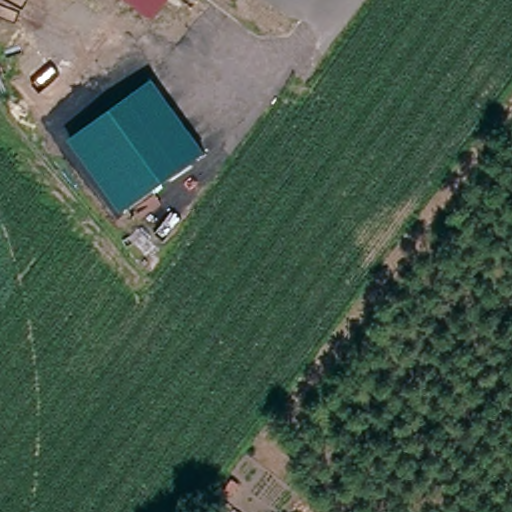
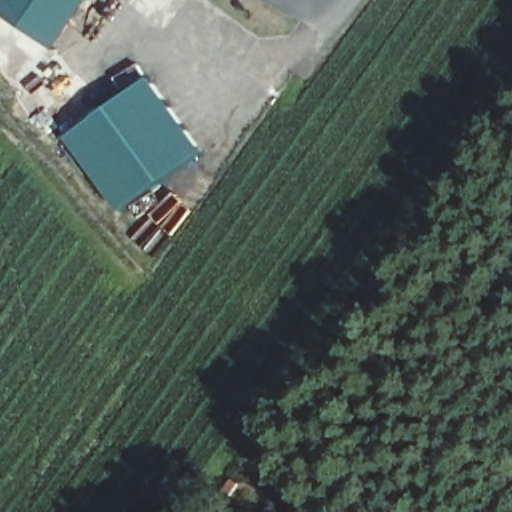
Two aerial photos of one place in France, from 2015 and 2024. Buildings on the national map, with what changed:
new [(91,0),(57,49),(0,12),(0,0),(91,0)]
demolished [(120,0),(170,0),(150,23),(120,0)]
unchanged [(202,152),(118,210),(69,134),(150,75),(202,152)]

